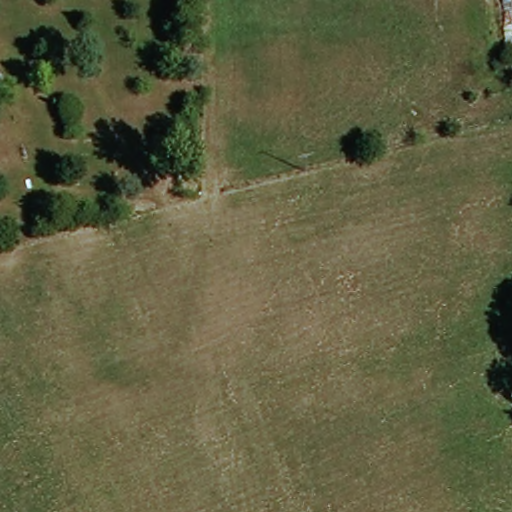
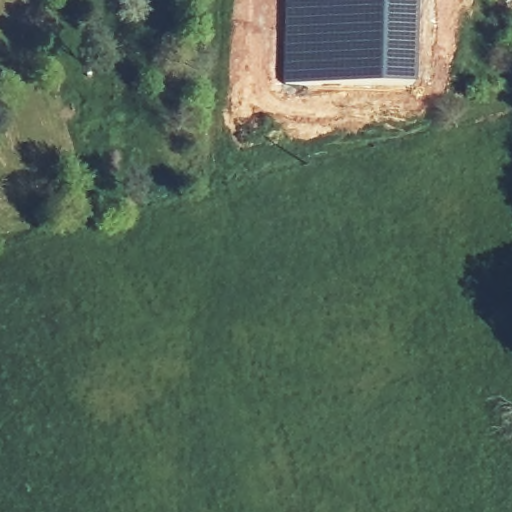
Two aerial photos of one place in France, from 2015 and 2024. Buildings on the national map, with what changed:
new [(415,0),(412,89),(371,88),(283,84),(285,0),(415,0)]

